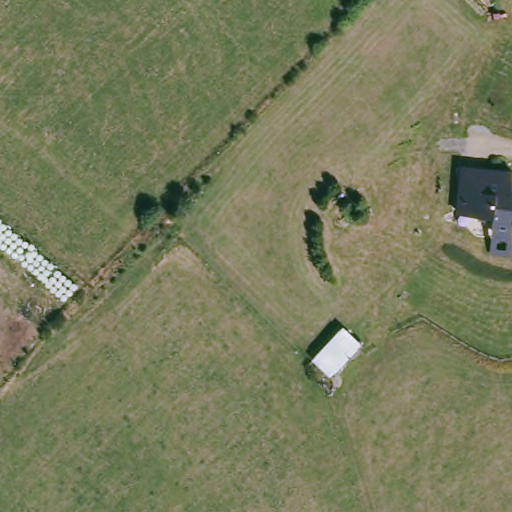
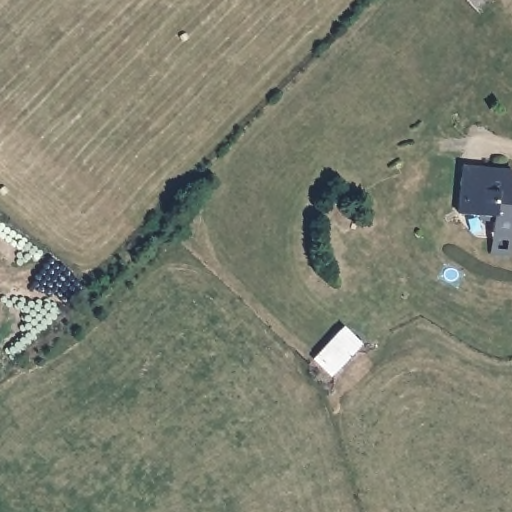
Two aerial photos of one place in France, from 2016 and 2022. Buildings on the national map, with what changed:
unchanged [(490,251),(493,231),(495,215),(459,212),(463,166),(512,170),(512,180),(512,185),(512,186),(512,254),(490,251)]
unchanged [(316,356),(340,330),(343,326),(361,344),(358,347),(334,373),(316,356)]

